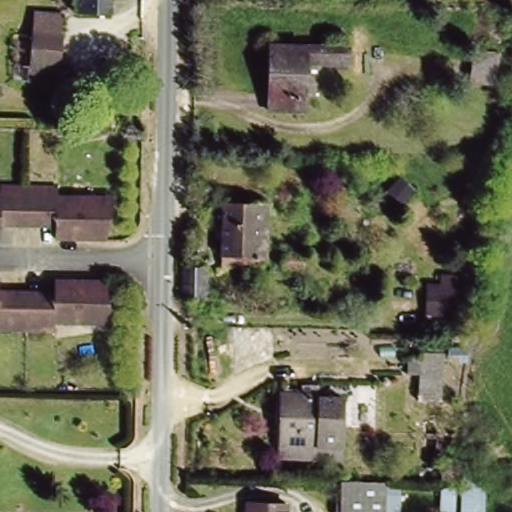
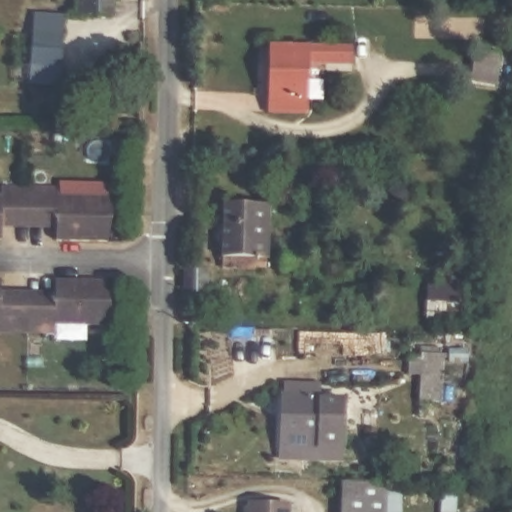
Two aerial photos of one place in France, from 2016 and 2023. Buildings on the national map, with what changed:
unchanged [(117,11),(78,6),(79,0),(128,0),(122,20),(117,11)]
unchanged [(30,61),(30,12),(58,13),(58,61),(58,78),(29,78),(30,61)]
unchanged [(270,37),(353,38),(353,66),(312,62),(311,107),(267,106),(270,37)]
unchanged [(482,47),(508,53),(495,89),(470,79),(482,47)]
unchanged [(48,241),(50,228),(0,228),(0,240),(0,186),(113,188),(112,241),(48,241)]
unchanged [(268,195),(268,239),(268,263),(220,263),(221,196),(268,195)]
unchanged [(292,195),(293,239),(268,239),(268,195),(292,195)]
unchanged [(210,289),(193,289),(194,262),(211,263),(210,289)]
unchanged [(110,322),(0,324),(0,272),(109,275),(110,322)]
unchanged [(277,385),(340,386),(341,445),(296,446),(296,434),(277,435),(277,385)]
unchanged [(490,472),(491,512),(440,512),(441,485),(462,483),(462,464),(490,472)]
unchanged [(390,478),(391,512),(340,512),(340,480),(390,478)]
unchanged [(292,499),(291,512),(244,512),(245,495),(292,499)]

